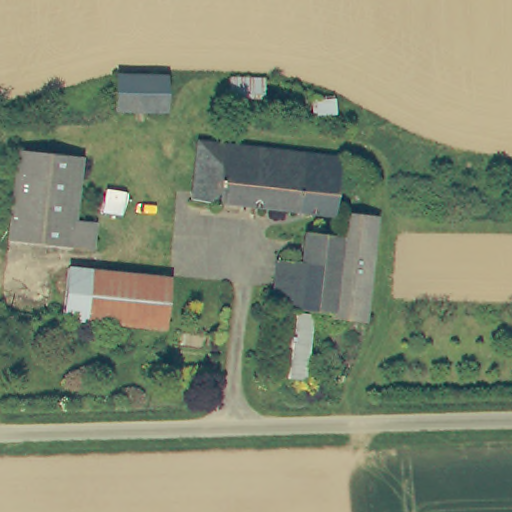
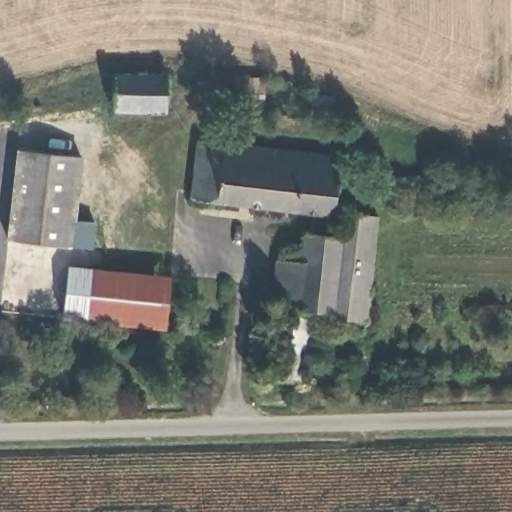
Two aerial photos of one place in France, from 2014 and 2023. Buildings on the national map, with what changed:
unchanged [(164,79),(162,114),(114,113),(112,110),(115,77),(164,79)]
unchanged [(337,154),(329,213),(187,197),(195,138),(337,154)]
unchanged [(81,157),(75,224),(93,227),(90,255),(12,247),(21,152),(81,157)]
unchanged [(369,217),(375,218),(363,323),(353,322),(331,319),(342,214),(369,217)]
unchanged [(301,235),(337,239),(328,315),(292,310),(297,266),(301,235)]
unchanged [(297,266),(292,310),(267,307),(273,263),(297,266)]
unchanged [(168,280),(165,332),(62,321),(67,268),(168,280)]
unchanged [(310,317),(302,382),(267,378),(275,313),(310,317)]

